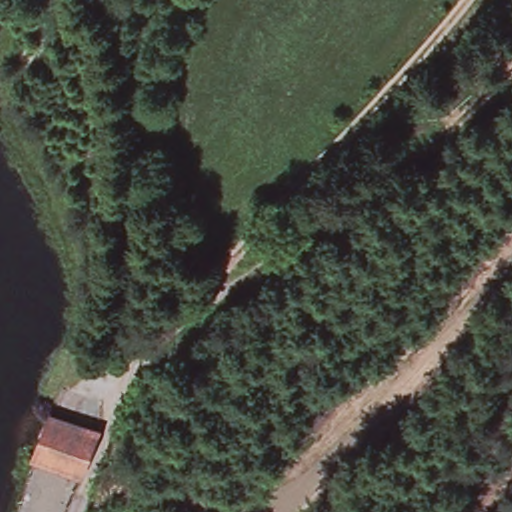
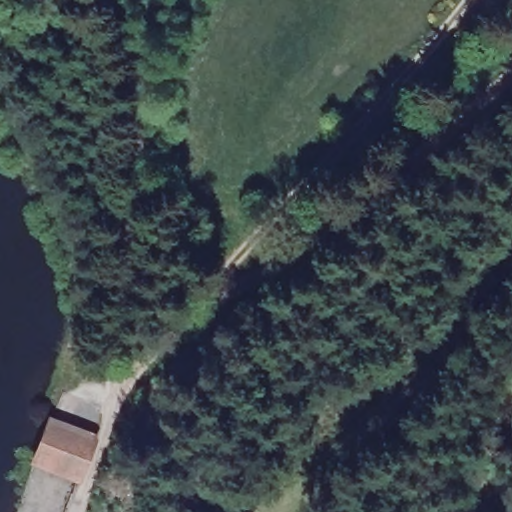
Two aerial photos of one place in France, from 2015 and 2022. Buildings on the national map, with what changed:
unchanged [(47,417),(97,433),(80,480),(79,480),(31,467),(47,417)]

